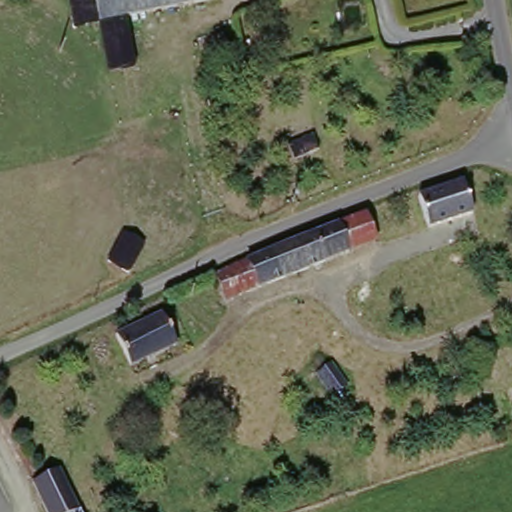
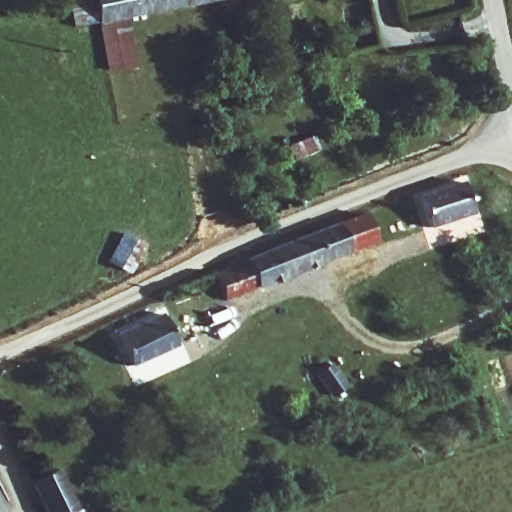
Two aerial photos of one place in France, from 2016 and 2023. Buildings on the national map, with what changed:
unchanged [(109,71),(99,23),(74,27),(69,0),(208,0),(126,16),(135,66),(109,71)]
unchanged [(313,134),(319,149),(295,160),(288,144),(313,134)]
unchanged [(461,184),(471,216),(427,230),(416,199),(461,184)]
unchanged [(337,223),(365,213),(375,243),(349,252),(225,302),(213,276),(279,246),(337,223)]
unchanged [(120,235),(141,245),(126,273),(106,262),(120,235)]
unchanged [(160,315),(174,347),(130,368),(115,337),(160,315)]
unchanged [(340,404),(333,395),(318,375),(331,365),(347,387),(353,395),(340,404)]
unchanged [(60,469),(80,511),(80,512),(49,512),(34,482),(60,469)]

